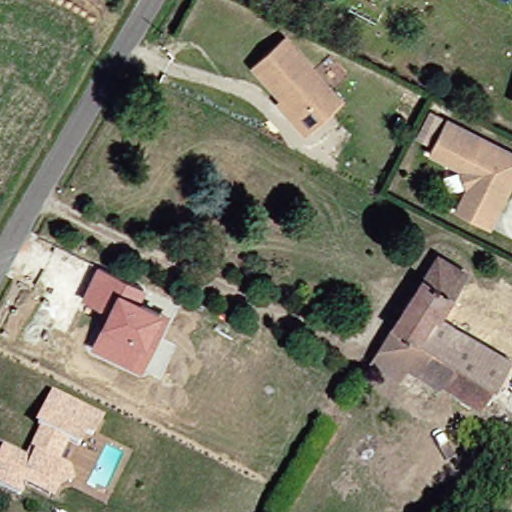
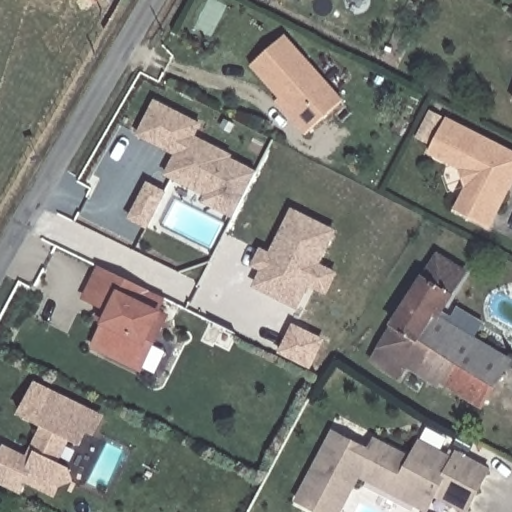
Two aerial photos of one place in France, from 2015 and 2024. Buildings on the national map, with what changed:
unchanged [(278,95),(250,60),(285,33),(339,102),(300,132),(289,117),(274,99),(278,95)]
new [(139,135),(155,102),(200,125),(194,137),(230,156),(230,159),(256,173),(234,217),(204,202),(206,195),(171,177),(166,175),(176,155),(139,135)]
unchanged [(475,183),(470,167),(436,149),(453,116),(512,147),(512,193),(495,224),(462,207),(475,183)]
new [(148,184),(165,193),(147,227),(130,219),(148,184)]
new [(325,292),(307,283),(296,306),(256,286),(264,270),(255,265),(262,252),(270,257),(292,212),(333,233),(316,265),(335,274),(325,292)]
unchanged [(443,377),(440,382),(408,362),(399,375),(382,363),(384,359),(372,350),(436,249),(465,267),(438,311),(510,354),(488,390),(493,393),(490,398),(485,395),(481,401),(443,377)]
unchanged [(101,326),(108,313),(80,301),(98,267),(145,290),(140,301),(162,312),(170,316),(141,371),(90,350),(101,326)]
unchanged [(4,444),(25,454),(40,426),(35,424),(54,391),(105,416),(95,443),(89,439),(85,447),(69,441),(57,464),(71,469),(76,482),(59,487),(55,498),(28,486),(24,495),(0,485),(0,452),(4,444)]
new [(360,475),(341,512),(318,512),(297,501),(334,432),(370,450),(375,440),(411,459),(420,442),(453,460),(456,453),(490,471),(468,512),(466,512),(435,496),(427,511),(418,506),(360,475)]

